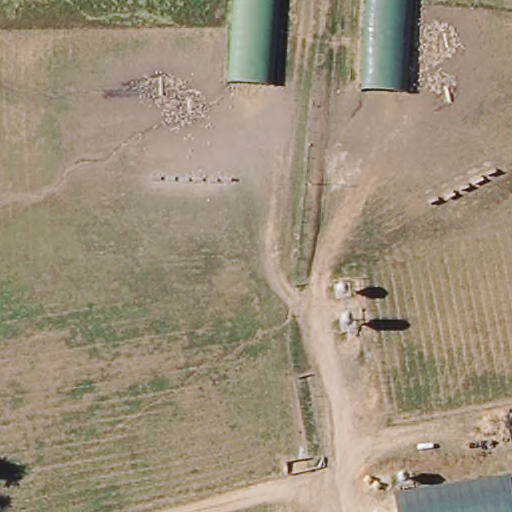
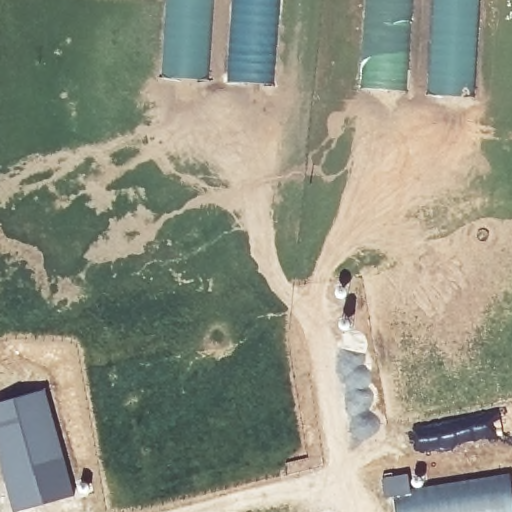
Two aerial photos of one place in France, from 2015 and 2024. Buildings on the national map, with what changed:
new [(167,0),(210,0),(206,80),(162,77),(167,0)]
unchanged [(238,0),(281,0),(275,85),(232,82),(238,0)]
unchanged [(372,0),(417,0),(414,92),(367,90),(372,0)]
new [(433,95),(438,0),(482,0),(476,96),(433,95)]
new [(75,497),(15,511),(0,449),(0,401),(49,389),(75,497)]
unchanged [(399,512),(396,495),(512,476),(512,512),(399,512)]

